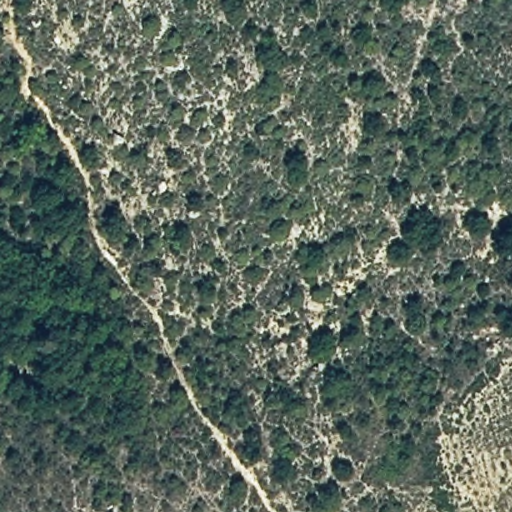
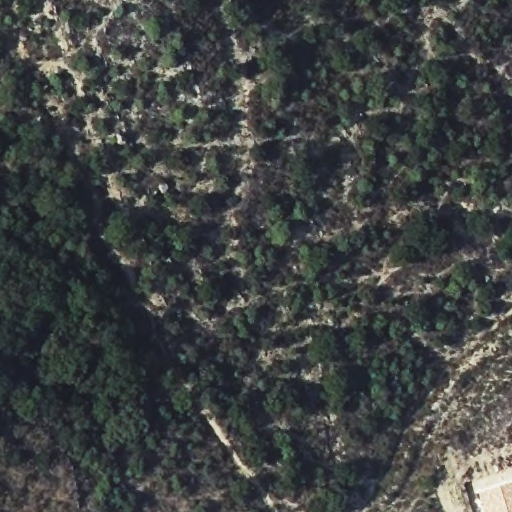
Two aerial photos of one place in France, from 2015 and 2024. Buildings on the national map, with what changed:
new [(512,481),(512,512),(481,512),(475,492),(512,481)]

